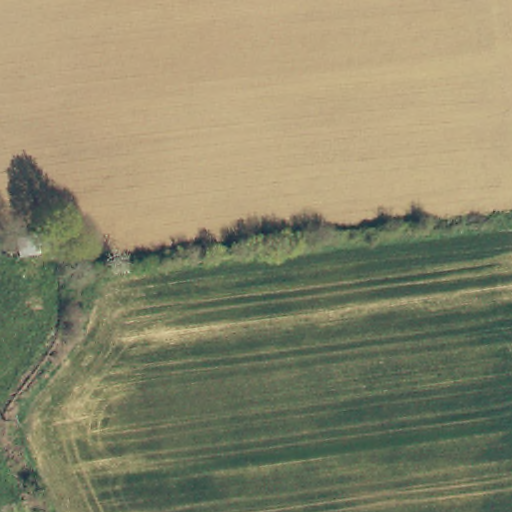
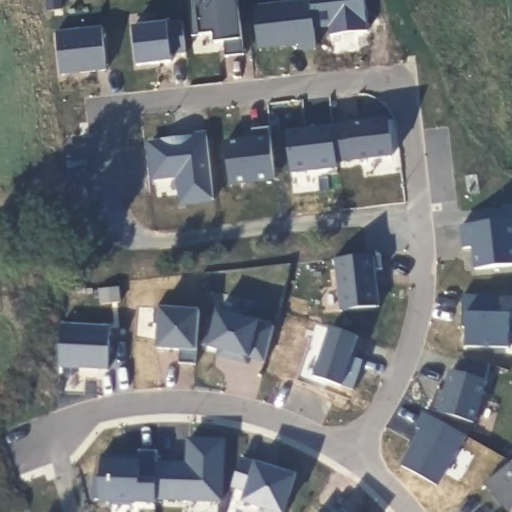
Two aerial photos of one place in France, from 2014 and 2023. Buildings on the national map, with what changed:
new [(241,40),(242,55),(226,57),(225,42),(215,43),(215,34),(200,35),(193,37),(188,0),(237,0),(241,40)]
new [(317,43),(259,51),(254,7),(306,0),(311,0),(317,43)]
new [(186,53),(170,54),(171,63),(137,68),(133,27),(167,24),(182,22),(186,53)]
new [(107,72),(61,77),(56,34),(101,28),(107,72)]
new [(286,131),(389,120),(392,159),(336,165),(338,170),(291,175),(286,131)]
new [(230,187),(225,141),(253,138),(252,130),(268,129),(275,181),(230,187)]
new [(340,314),(335,260),(380,256),(382,270),(375,270),(378,307),(340,314)]
new [(159,309),(199,313),(197,352),(196,365),(179,364),(179,352),(157,349),(159,309)]
new [(265,364),(250,360),(247,366),(218,358),(219,352),(208,348),(201,348),(206,328),(214,328),(217,311),(260,323),(273,327),(265,364)]
new [(107,370),(60,367),(61,326),(110,328),(107,370)]
new [(351,356),(363,362),(355,390),(342,384),(341,388),(312,378),(330,329),(358,338),(351,356)]
new [(486,382),(475,423),(437,413),(430,412),(436,392),(442,393),(449,371),(457,373),(461,359),(490,366),(486,382)]
new [(155,500),(156,505),(100,503),(100,500),(93,501),(94,479),(101,478),(101,457),(139,459),(140,452),(158,452),(158,463),(185,464),(187,439),(225,440),(223,504),(155,500)]
new [(262,512),(264,509),(245,502),(249,492),(233,486),(241,461),(262,469),(263,464),(297,475),(283,512),(262,512)]
new [(506,512),(485,485),(512,463),(512,510),(509,512),(506,512)]

